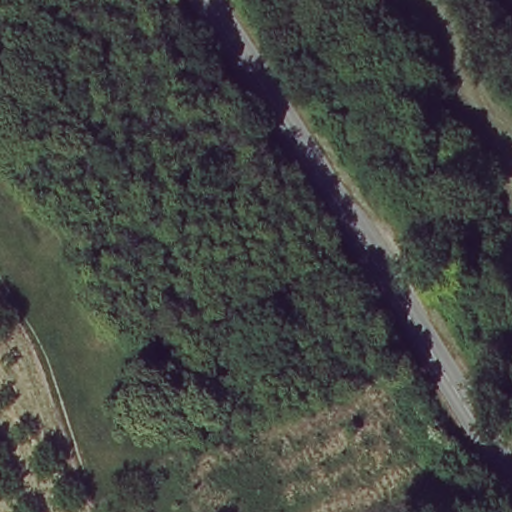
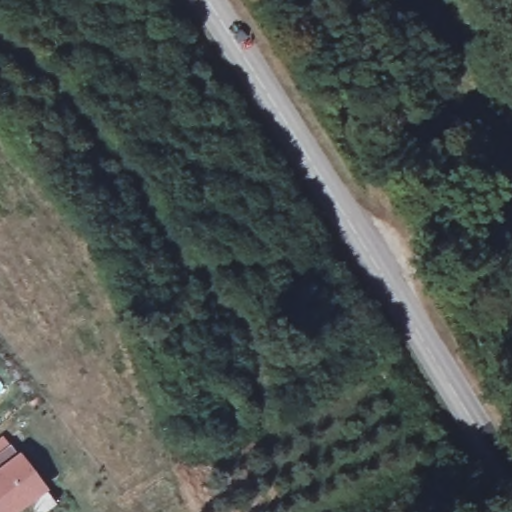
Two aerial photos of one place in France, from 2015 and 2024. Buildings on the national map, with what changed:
unchanged [(403,244),(412,260),(401,266),(392,249),(403,244)]
new [(0,453),(10,445),(17,454),(19,453),(47,490),(18,512),(0,512),(0,453)]

